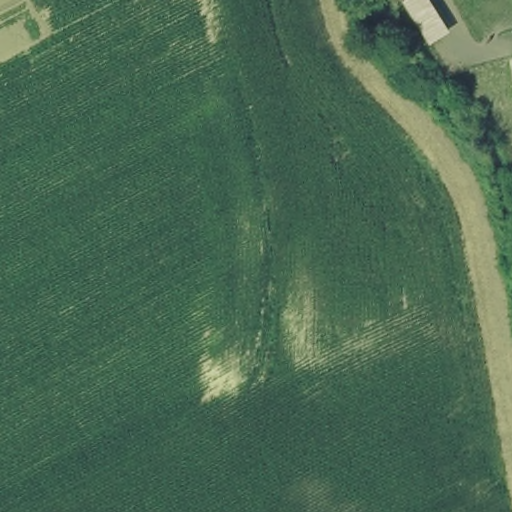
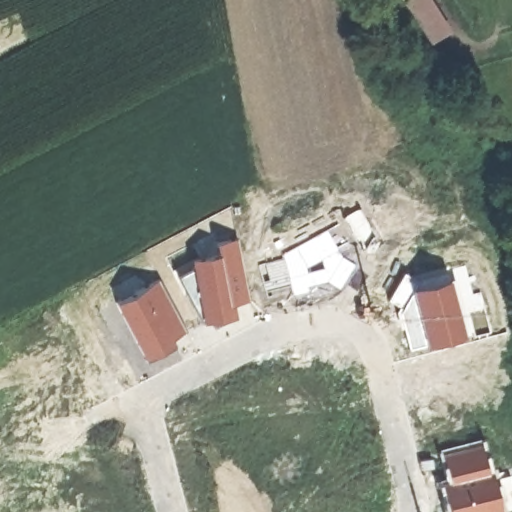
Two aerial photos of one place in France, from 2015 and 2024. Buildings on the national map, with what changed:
unchanged [(432,0),(452,31),(431,44),(403,1),(405,0),(432,0)]
new [(358,206),(373,232),(359,242),(342,216),(358,206)]
new [(283,258),(283,252),(327,229),(341,256),(356,265),(340,290),(327,281),(308,286),(310,292),(292,295),(290,282),(264,289),(257,263),(283,258)]
new [(192,269),(191,259),(216,254),(214,242),(238,239),(249,301),(231,303),(233,316),(203,321),(180,277),(192,269)]
new [(160,278),(185,331),(172,338),(175,345),(145,362),(115,301),(160,278)]
new [(448,279),(463,336),(424,346),(410,288),(448,279)]
new [(480,443),(488,472),(449,481),(442,452),(480,443)]
new [(449,481),(488,472),(491,471),(501,512),(447,512),(441,483),(449,481)]

